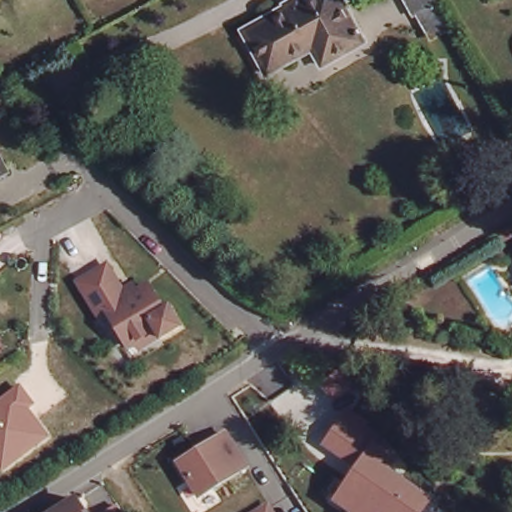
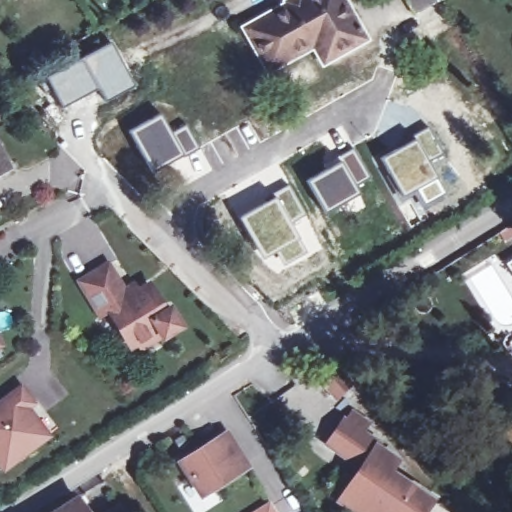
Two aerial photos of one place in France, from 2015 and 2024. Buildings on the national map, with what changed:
unchanged [(307,51),(272,71),(247,28),(283,8),(297,0),(348,0),(369,38),(326,62),(317,46),(307,51)]
unchanged [(432,39),(417,12),(412,14),(404,0),(440,0),(454,26),(432,39)]
new [(110,41),(135,85),(103,102),(97,88),(61,107),(44,75),(110,41)]
new [(160,113),(171,132),(187,124),(200,147),(153,173),(128,130),(160,113)]
new [(447,193),(414,214),(405,198),(402,199),(379,156),(429,126),(444,152),(462,180),(447,193)]
unchanged [(18,166),(0,176),(0,130),(18,166)]
new [(324,213),(305,180),(338,160),(337,156),(355,146),(370,177),(357,185),(360,192),(324,213)]
new [(282,268),(272,252),(262,259),(237,216),(288,185),(305,214),(292,221),(300,234),(310,251),(282,268)]
unchanged [(135,338),(127,342),(107,306),(99,311),(79,277),(106,260),(122,287),(132,281),(136,287),(147,280),(162,306),(168,303),(180,323),(160,334),(159,332),(138,344),(135,338)]
unchanged [(2,473),(0,470),(0,400),(20,384),(35,406),(30,409),(50,437),(2,473)]
unchanged [(347,418),(350,409),(371,420),(365,432),(383,440),(380,445),(402,460),(395,472),(435,500),(428,512),(350,512),(335,501),(360,466),(322,445),(342,416),(347,418)]
unchanged [(223,429),(245,463),(198,493),(177,459),(223,429)]
unchanged [(82,512),(60,512),(76,502),(82,512)]
unchanged [(266,512),(248,512),(260,504),(266,512)]

